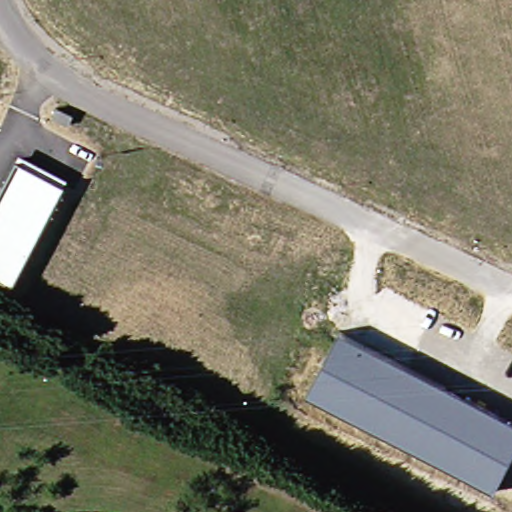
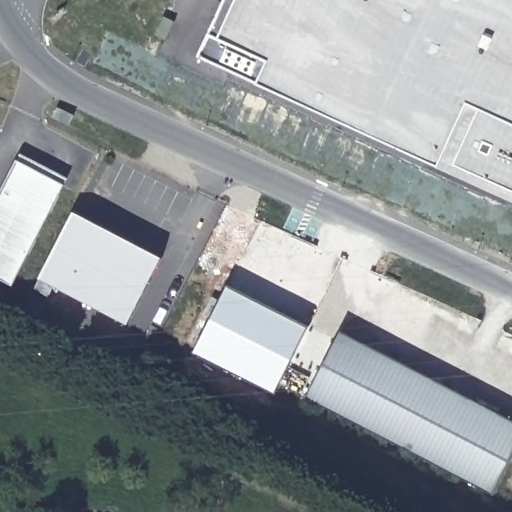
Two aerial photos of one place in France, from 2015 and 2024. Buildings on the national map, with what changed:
new [(281,4),(283,0),(512,0),(512,203),(451,175),(478,115),(465,109),(435,177),(192,67),(222,0),(274,0),(281,4)]
new [(478,115),(451,175),(512,203),(512,213),(435,177),(465,109),(478,115)]
unchanged [(11,288),(0,282),(0,189),(20,150),(66,177),(11,288)]
new [(163,260),(129,326),(40,280),(75,214),(163,260)]
new [(195,352),(229,287),(308,328),(275,392),(195,352)]
unchanged [(303,394),(337,331),(512,419),(512,454),(492,491),(303,394)]

